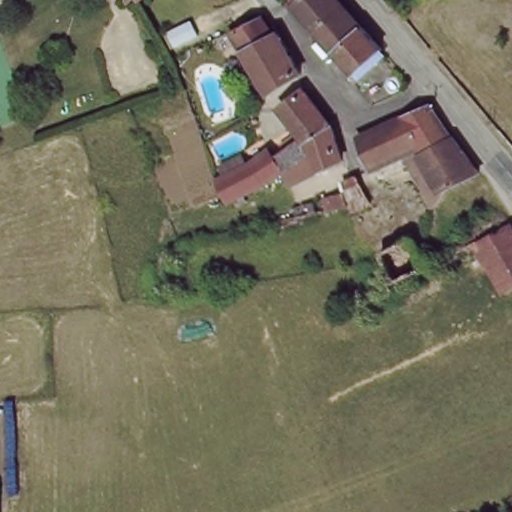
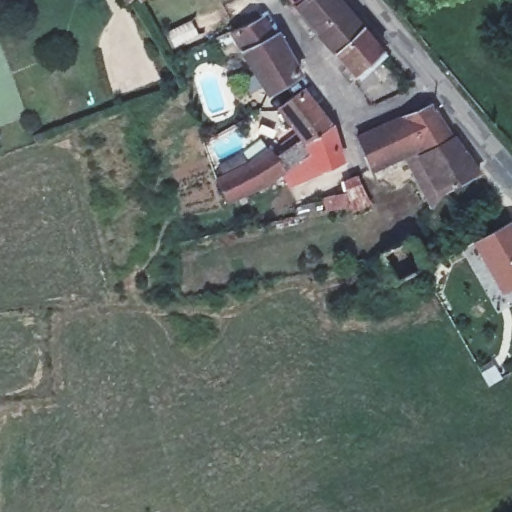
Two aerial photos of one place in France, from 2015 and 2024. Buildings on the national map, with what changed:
unchanged [(127,6),(124,0),(137,0),(127,6)]
unchanged [(146,1),(142,3),(139,0),(147,0),(146,1)]
unchanged [(354,61),(341,44),(334,35),(333,36),(310,8),(304,0),(353,0),(353,1),(360,9),(368,19),(382,35),(396,53),(369,78),(354,61)]
unchanged [(235,27),(239,25),(259,17),(270,33),(281,27),(305,68),(272,88),(235,27)]
unchanged [(284,106),(311,87),(322,102),(337,124),(309,143),(284,106)]
unchanged [(496,180),(464,200),(462,202),(459,203),(450,216),(423,166),(388,181),(381,161),(376,146),(395,137),(418,128),(420,128),(449,116),(456,125),(461,132),(473,148),(476,153),(496,180)]
unchanged [(307,147),(309,143),(337,124),(348,154),(312,170),(304,154),(307,147)]
unchanged [(304,154),(293,159),(265,172),(265,173),(234,184),(226,186),(224,187),(214,165),(263,141),(269,150),(288,140),(295,152),(307,147),(304,154)]
unchanged [(512,290),(505,293),(475,243),(512,223),(512,290)]
unchanged [(395,283),(379,253),(411,238),(428,268),(395,283)]

